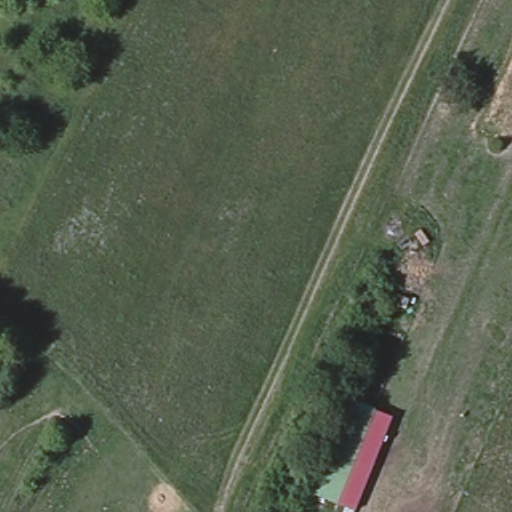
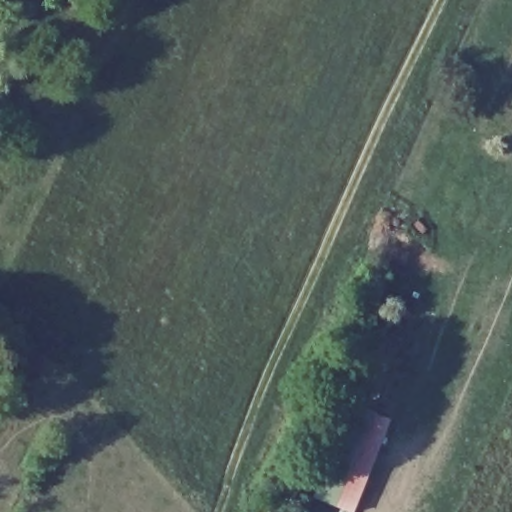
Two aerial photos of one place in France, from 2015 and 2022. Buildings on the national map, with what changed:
unchanged [(357,512),(315,496),(353,401),(395,418),(357,512)]

